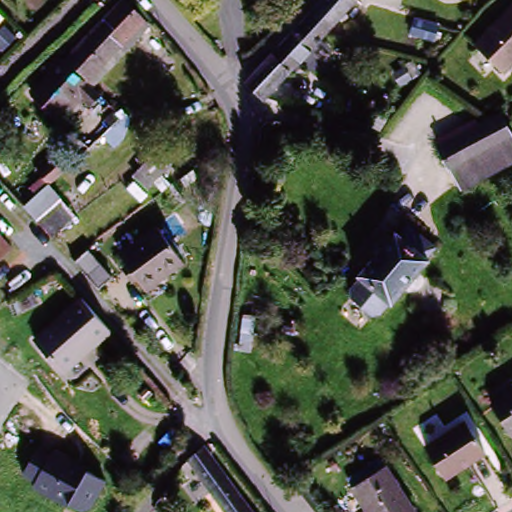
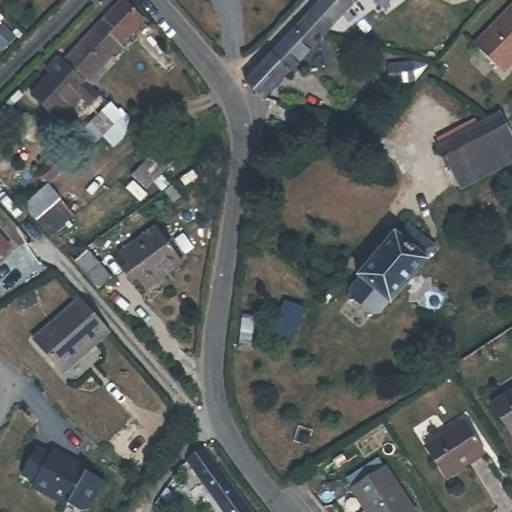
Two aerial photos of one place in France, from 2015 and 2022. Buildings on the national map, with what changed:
unchanged [(82,106),(68,93),(75,86),(54,64),(46,72),(37,64),(53,47),(65,58),(118,0),(125,0),(141,13),(148,23),(92,84),(97,89),(82,106)]
unchanged [(312,12),(326,0),(356,0),(327,28),(312,12)]
unchanged [(512,6),(512,62),(502,72),(475,44),(512,6)]
unchanged [(252,65),(312,12),(327,28),(269,81),(252,65)]
unchanged [(2,46),(0,44),(0,27),(5,22),(16,33),(2,46)]
unchanged [(54,108),(37,94),(52,79),(68,93),(60,102),(54,108)]
unchanged [(129,116),(123,133),(111,144),(100,133),(110,124),(106,119),(117,107),(119,105),(129,116)]
unchanged [(440,147),(467,128),(497,107),(502,125),(507,132),(512,140),(512,161),(465,189),(461,182),(459,179),(454,170),(452,171),(442,151),(440,147)]
unchanged [(156,144),(170,160),(143,184),(128,168),(156,144)]
unchanged [(24,206),(36,194),(44,185),(76,221),(55,240),(24,206)]
unchanged [(147,226),(179,263),(144,294),(112,256),(147,226)]
unchanged [(369,312),(366,309),(349,292),(349,284),(360,273),(358,272),(397,232),(400,236),(409,226),(435,250),(426,260),(429,262),(392,306),(387,301),(376,312),(369,312)]
unchanged [(0,260),(0,234),(12,248),(0,260)]
unchanged [(74,260),(86,249),(110,277),(99,287),(74,260)]
unchanged [(77,300),(112,334),(66,375),(30,343),(77,300)]
unchanged [(512,391),(512,440),(510,441),(487,407),(512,391)]
unchanged [(462,426),(485,458),(446,485),(424,452),(462,426)]
unchanged [(40,447),(105,481),(92,509),(86,511),(69,502),(67,506),(34,486),(36,483),(24,476),(40,447)]
unchanged [(253,512),(223,512),(196,478),(215,464),(253,512)]
unchanged [(418,512),(359,512),(349,496),(389,470),(418,512)]

